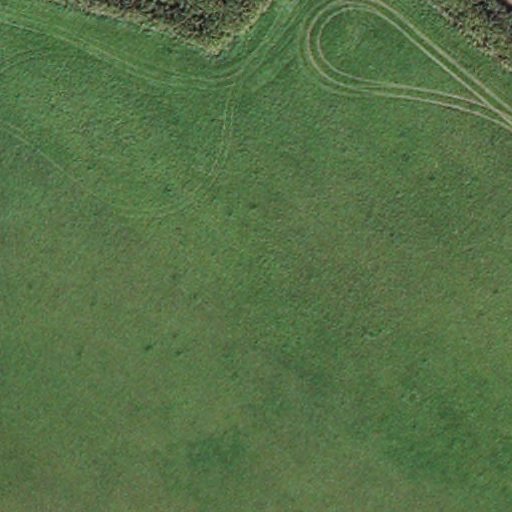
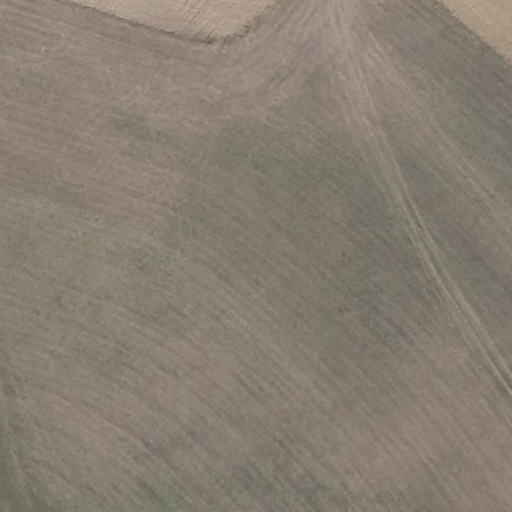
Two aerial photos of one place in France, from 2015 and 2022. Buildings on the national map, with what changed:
[]

